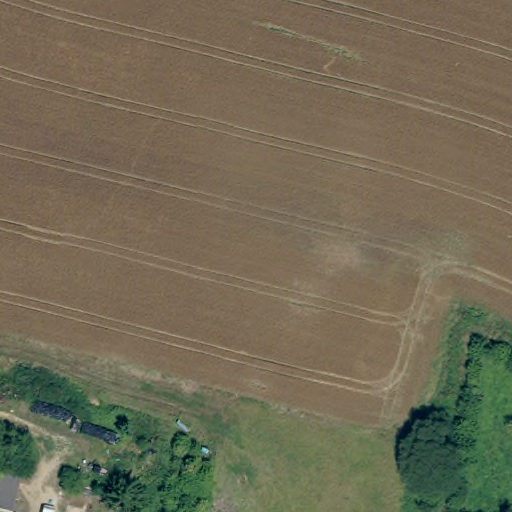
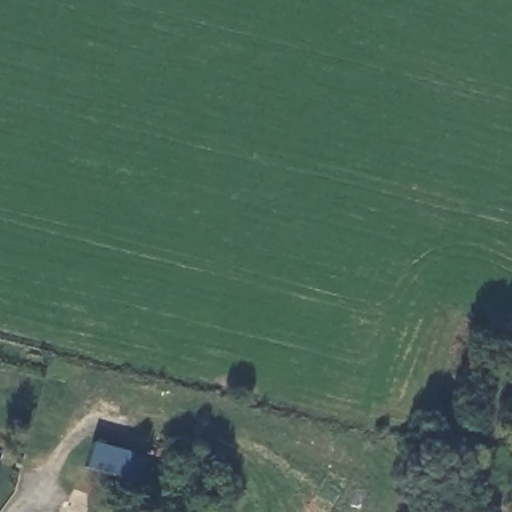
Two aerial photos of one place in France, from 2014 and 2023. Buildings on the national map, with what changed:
new [(128,455),(142,458),(138,477),(123,474),(122,479),(85,469),(92,443),(129,453),(128,455)]
unchanged [(11,496),(0,493),(0,461),(17,465),(11,496)]

